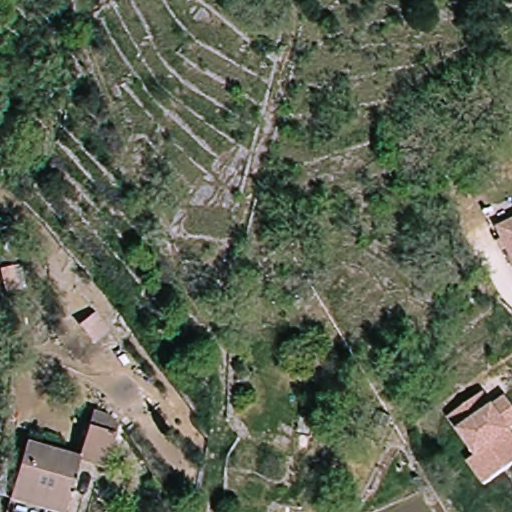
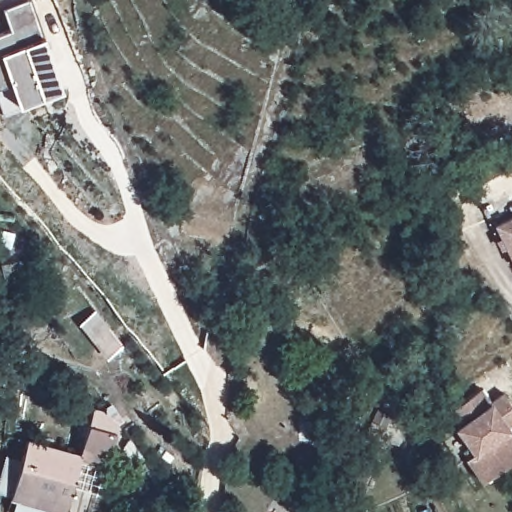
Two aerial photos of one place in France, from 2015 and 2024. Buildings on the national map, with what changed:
new [(21,110),(12,85),(0,89),(0,38),(13,33),(6,12),(34,2),(51,55),(59,79),(54,81),(60,98),(43,103),(21,110)]
unchanged [(497,218),(512,214),(512,273),(497,218)]
new [(96,315),(111,335),(95,347),(80,327),(96,315)]
unchanged [(510,427),(511,430),(498,439),(512,459),(512,464),(485,482),(469,459),(477,453),(450,415),(483,391),(493,404),(507,395),(512,402),(512,426),(510,427)]
unchanged [(20,494),(23,481),(33,441),(86,454),(97,407),(123,413),(112,466),(86,460),(77,494),(74,507),(20,494)]
unchanged [(372,420),(387,427),(379,443),(364,436),(372,420)]

